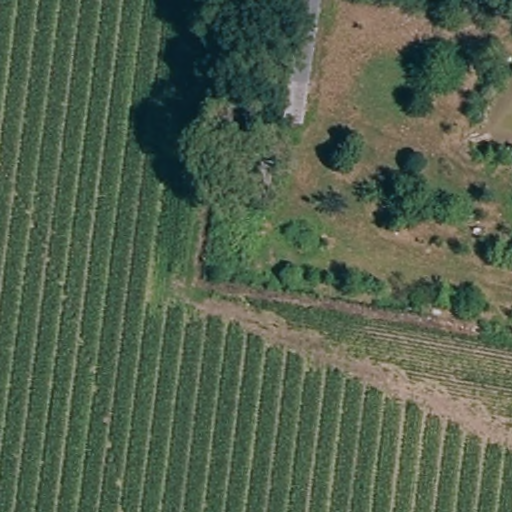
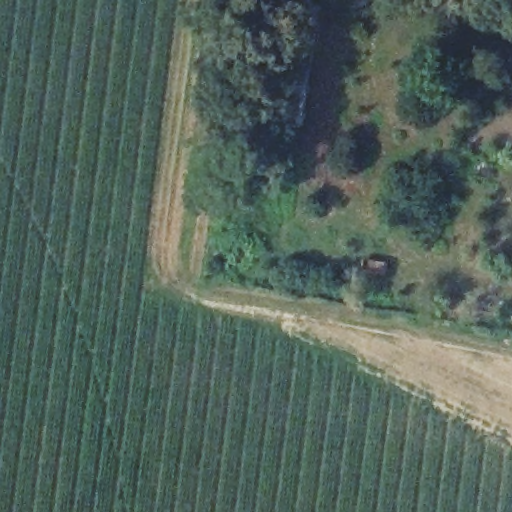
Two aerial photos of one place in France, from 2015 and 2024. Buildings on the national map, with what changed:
unchanged [(301,0),(321,0),(302,126),(285,125),(301,0)]

